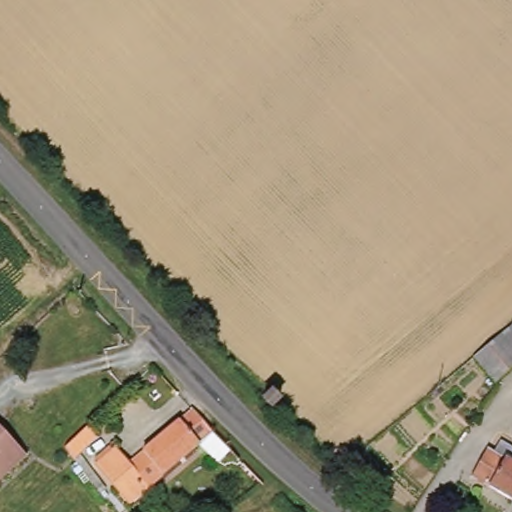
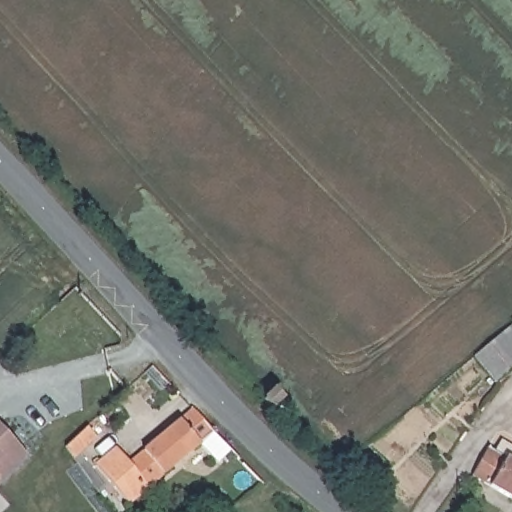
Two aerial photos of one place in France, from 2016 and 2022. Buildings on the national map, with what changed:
unchanged [(492,387),(471,359),(512,323),(512,369),(492,387)]
unchanged [(270,389),(277,394),(283,399),(269,413),(259,401),(270,389)]
unchanged [(111,444),(128,462),(142,451),(178,421),(191,409),(230,451),(214,464),(197,447),(161,476),(128,505),(93,465),(91,458),(111,444)]
unchanged [(0,479),(0,428),(24,456),(0,479)]
unchanged [(84,428),(93,438),(75,455),(66,444),(84,428)]
unchanged [(512,437),(512,500),(468,472),(491,441),(498,444),(504,433),(511,437),(512,437)]

